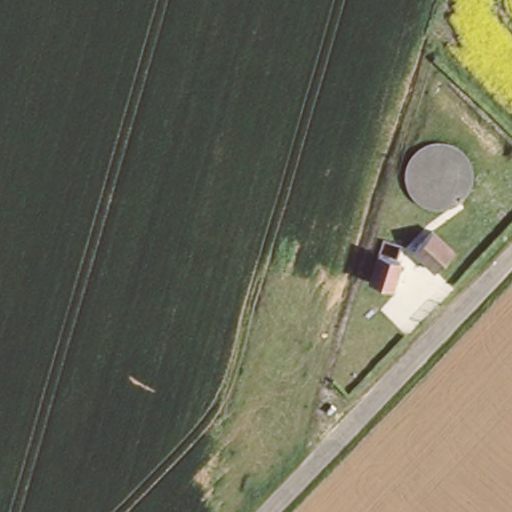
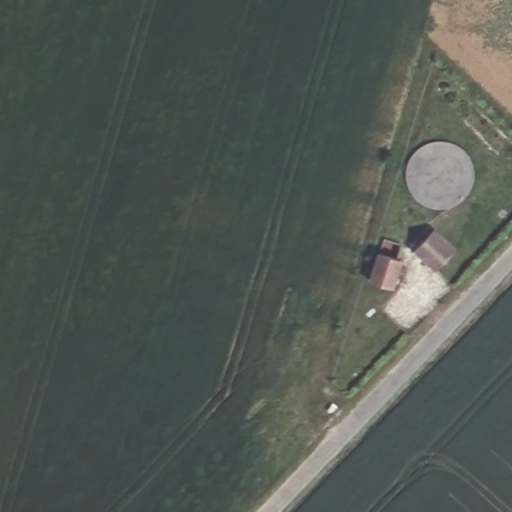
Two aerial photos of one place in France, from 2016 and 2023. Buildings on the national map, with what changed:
unchanged [(452,245),(434,265),(414,245),(431,227),(452,245)]
unchanged [(379,252),(401,258),(393,286),(372,280),(379,252)]

